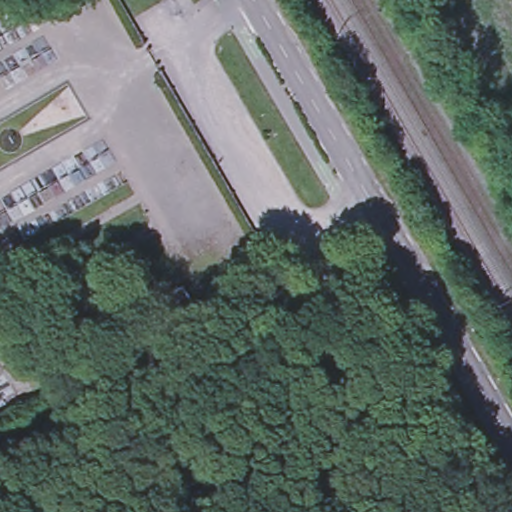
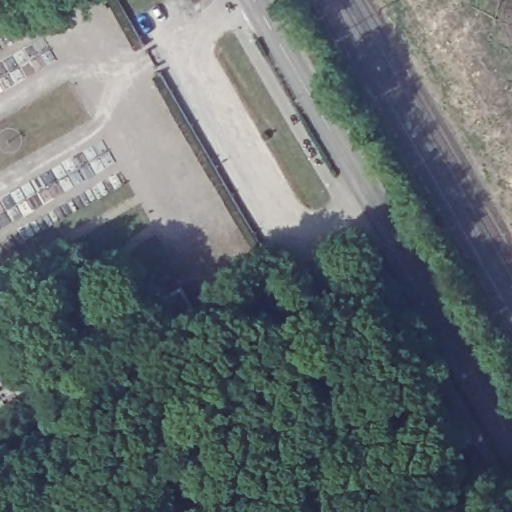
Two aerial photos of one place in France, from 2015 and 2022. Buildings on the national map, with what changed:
unchanged [(170,342),(153,313),(180,298),(196,326),(191,329),(176,337),(170,342)]

